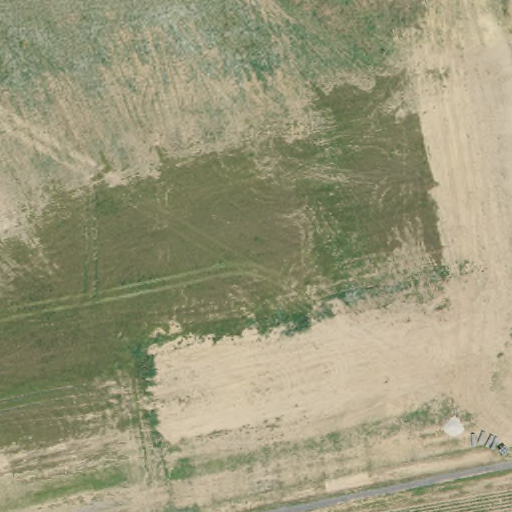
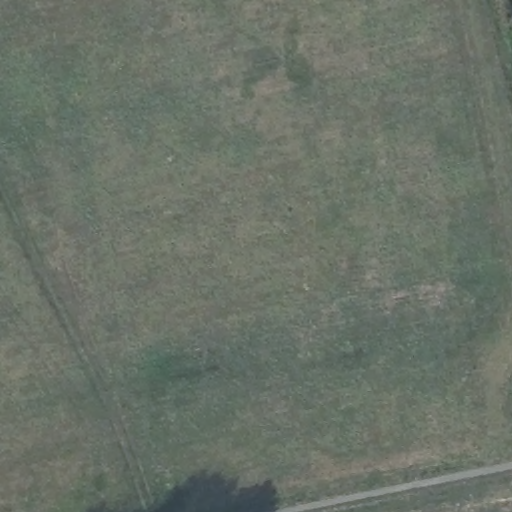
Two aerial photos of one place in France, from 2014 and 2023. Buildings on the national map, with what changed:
[]

